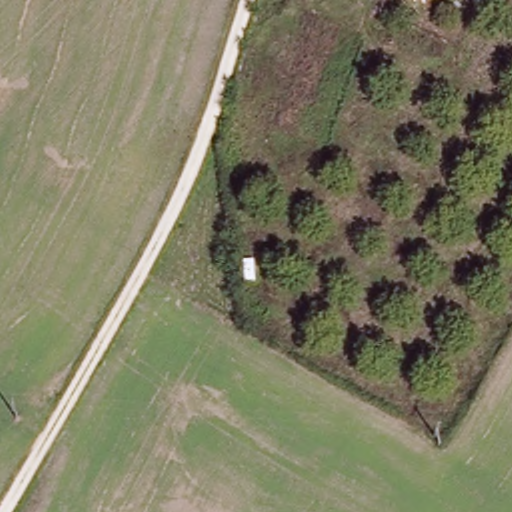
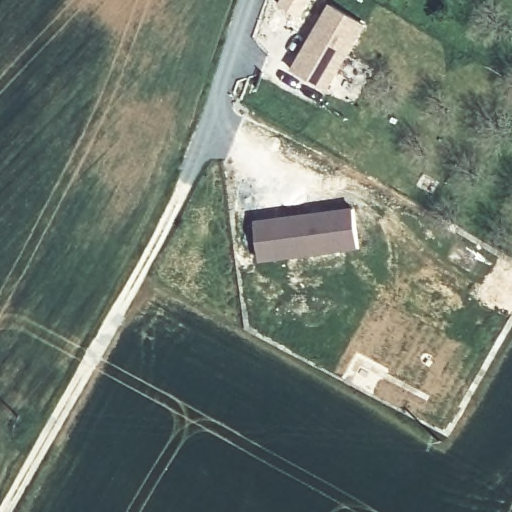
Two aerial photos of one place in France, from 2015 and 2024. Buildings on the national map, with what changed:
new [(303,18),(278,6),(282,0),(313,0),(303,18)]
new [(292,71),(330,6),(368,27),(330,91),(292,71)]
new [(262,263),(255,221),(354,209),(358,250),(262,263)]

